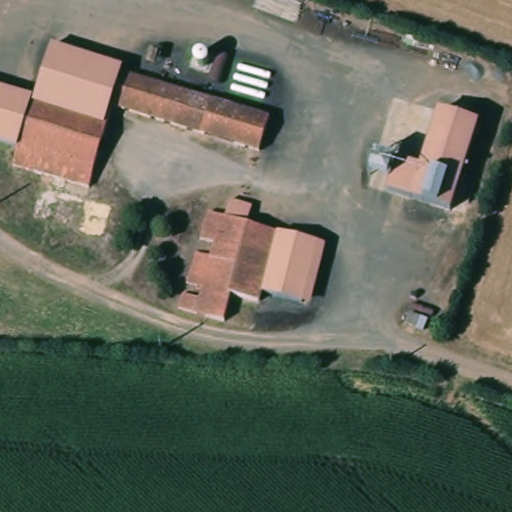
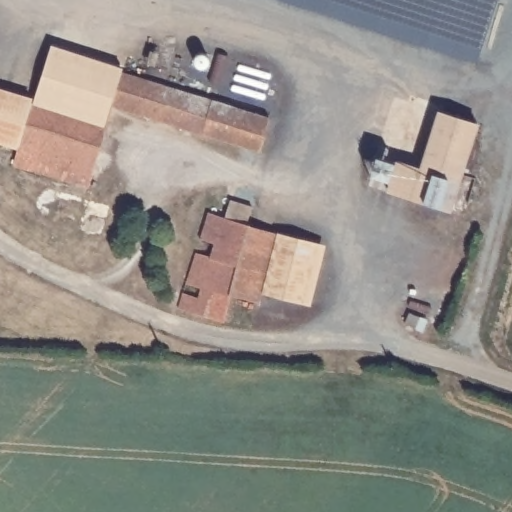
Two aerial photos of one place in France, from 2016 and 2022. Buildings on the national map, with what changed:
new [(496,0),(476,63),(283,0),(496,0)]
unchanged [(121,66),(270,114),(258,154),(114,106),(87,184),(13,160),(17,150),(0,145),(0,88),(35,99),(50,45),(121,66)]
unchanged [(450,209),(390,189),(400,158),(422,166),(441,111),(479,124),(450,209)]
unchanged [(227,321),(181,309),(185,293),(198,297),(200,288),(187,283),(198,251),(210,254),(214,240),(202,236),(210,209),(227,213),(230,199),(255,205),(250,222),(252,222),(234,292),(227,321)]
unchanged [(261,300),(234,292),(252,222),(281,230),(280,231),(265,288),(261,300)]
unchanged [(280,231),(281,230),(321,242),(305,300),(265,288),(280,231)]

